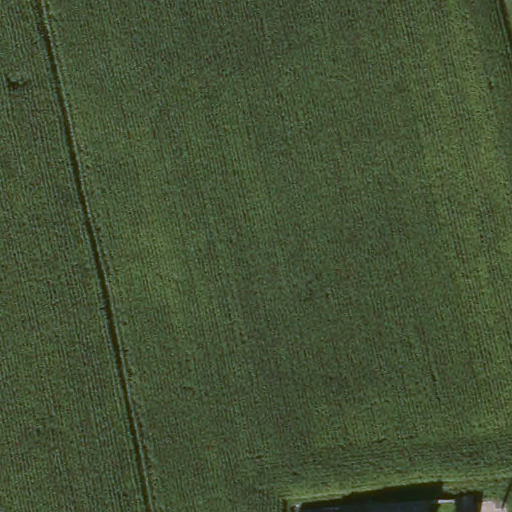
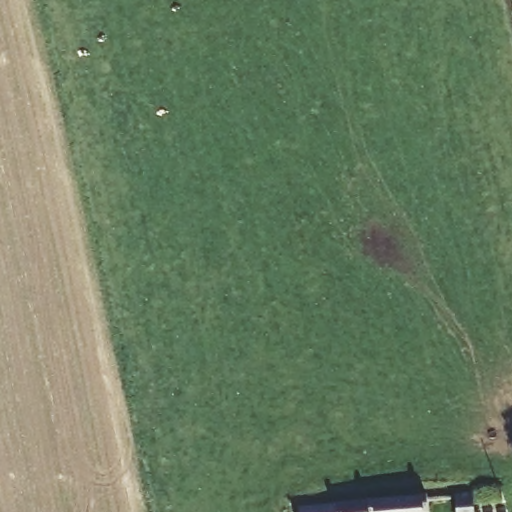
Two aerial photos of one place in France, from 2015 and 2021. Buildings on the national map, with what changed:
unchanged [(418,512),(343,512),(418,504),(418,512)]
unchanged [(447,512),(446,509),(463,506),(464,512),(447,512)]

